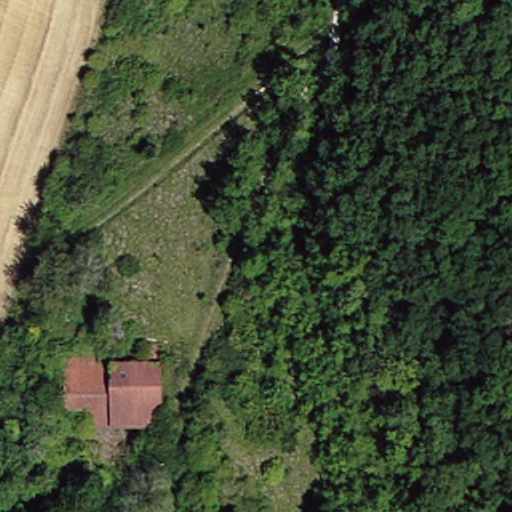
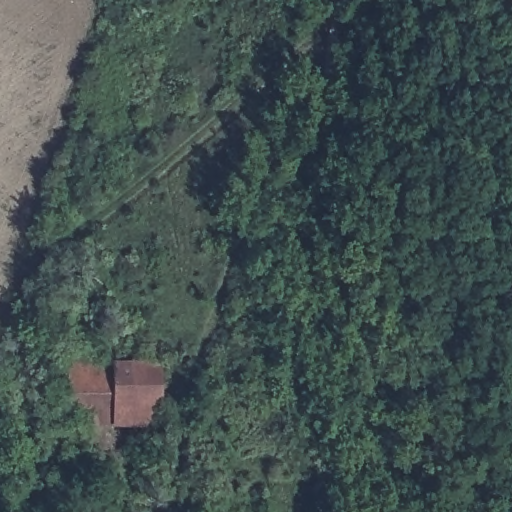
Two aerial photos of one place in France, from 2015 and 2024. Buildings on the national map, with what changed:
unchanged [(130,427),(130,407),(67,405),(67,345),(111,345),(110,363),(166,363),(168,405),(168,426),(130,427)]

